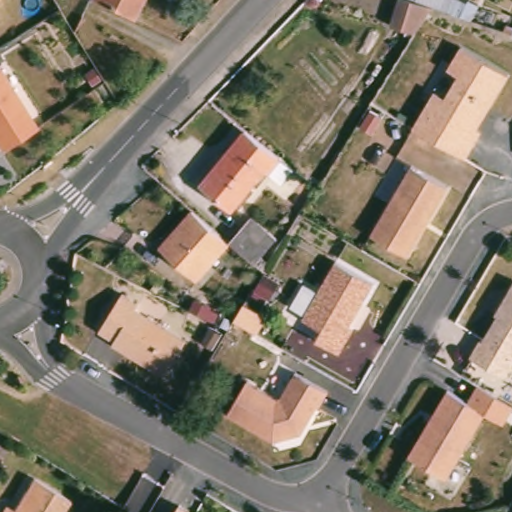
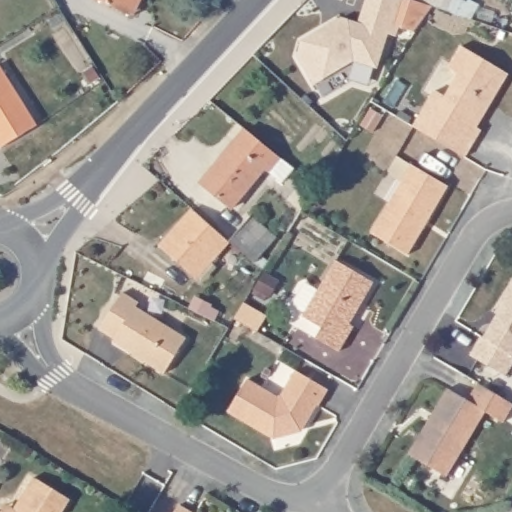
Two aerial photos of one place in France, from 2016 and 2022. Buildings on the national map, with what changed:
unchanged [(123,14),(95,0),(136,0),(127,16),(123,14)]
new [(389,24),(398,27),(395,37),(388,35),(377,69),(353,62),(315,84),(298,53),(300,41),(341,18),(358,23),(366,0),(469,0),(480,5),(471,20),(460,16),(432,7),(416,33),(389,24)]
demolished [(389,24),(398,0),(412,0),(415,1),(429,6),(432,7),(416,33),(389,24)]
demolished [(432,7),(415,1),(416,0),(456,0),(451,13),(432,7)]
unchanged [(471,125),(480,130),(464,158),(418,131),(412,127),(435,91),(445,97),(459,74),(448,68),(461,46),(508,74),(488,107),(483,104),(471,125)]
unchanged [(35,127),(0,150),(0,70),(35,127)]
unchanged [(240,130),(288,169),(276,183),(260,170),(226,210),(195,184),(240,130)]
unchanged [(370,234),(411,165),(447,187),(407,255),(370,234)]
unchanged [(160,248),(170,238),(175,237),(182,228),(182,223),(193,211),(230,242),(232,245),(201,282),(160,248)]
unchanged [(251,217),(251,216),(276,238),(255,264),(232,245),(230,242),(251,217)]
unchanged [(349,324),(353,326),(339,351),(315,338),(321,327),(302,316),(304,312),(291,305),(304,282),(317,290),(335,260),(373,282),(349,324)]
unchanged [(475,351),(512,288),(512,369),(510,372),(475,351)]
unchanged [(130,354),(132,351),(100,331),(123,294),(139,304),(136,308),(187,340),(165,375),(130,354)]
unchanged [(303,421),(297,418),(287,435),(268,440),(223,413),(242,380),(272,397),(276,396),(283,384),(290,371),(323,390),(316,402),(313,407),(311,406),(303,421)]
unchanged [(410,449),(447,385),(485,407),(447,470),(446,473),(408,450),(410,449)]
unchanged [(7,511),(29,477),(65,500),(57,512),(0,512),(0,510),(1,508),(7,511)]
unchanged [(195,510),(194,512),(172,512),(179,501),(195,510)]

